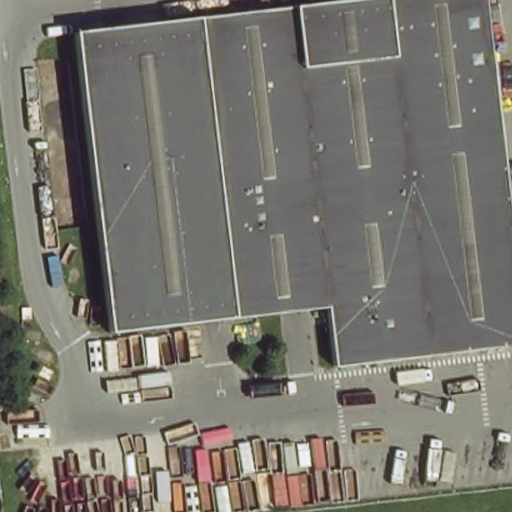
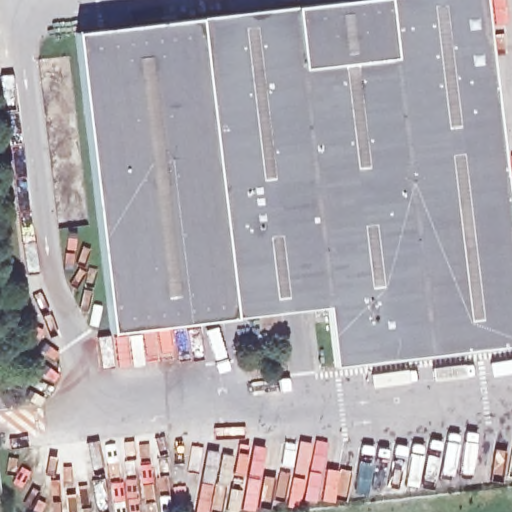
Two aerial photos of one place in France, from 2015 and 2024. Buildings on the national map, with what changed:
unchanged [(328,307),(112,333),(76,34),(366,0),(495,0),(512,142),(512,343),(335,364),(328,307)]
unchanged [(9,380),(12,405),(0,406),(0,381),(9,380)]

